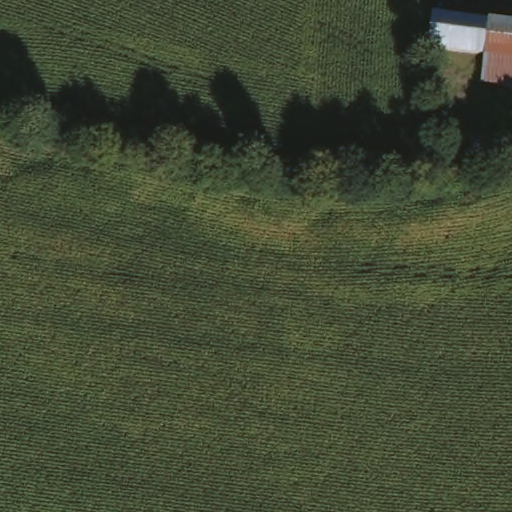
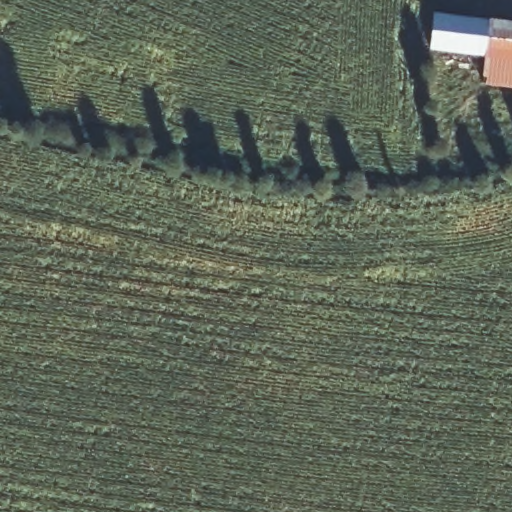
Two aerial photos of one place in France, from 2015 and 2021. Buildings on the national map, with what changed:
unchanged [(492,16),(487,52),(432,46),(437,7),(492,16)]
unchanged [(512,18),(512,83),(485,80),(487,52),(492,16),(512,18)]

